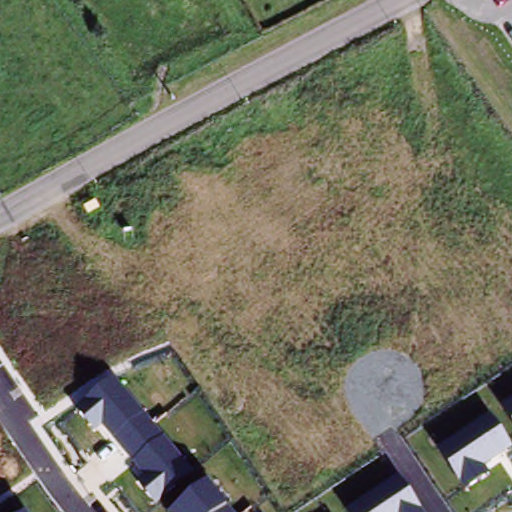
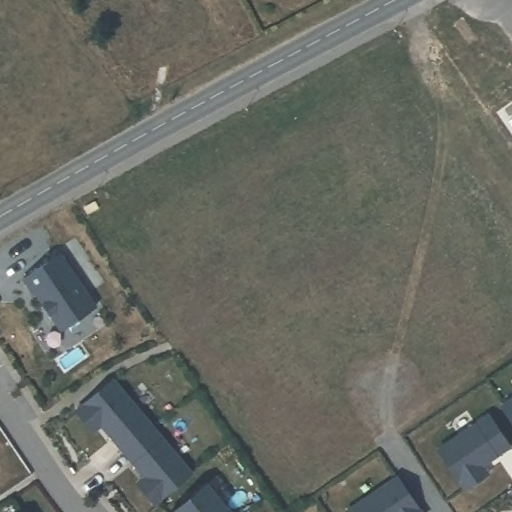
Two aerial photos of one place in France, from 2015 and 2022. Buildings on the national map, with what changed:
new [(58,260),(94,313),(60,336),(34,298),(32,300),(22,285),(58,260)]
unchanged [(224,509),(227,512),(173,512),(163,500),(157,506),(140,485),(145,480),(100,426),(94,432),(78,411),(114,380),(227,506),(224,509)]
unchanged [(512,401),(512,419),(505,405),(512,401)]
unchanged [(492,416),(511,447),(484,465),(489,475),(463,489),(439,448),(492,416)]
unchanged [(422,512),(350,512),(347,507),(397,473),(422,512)]

